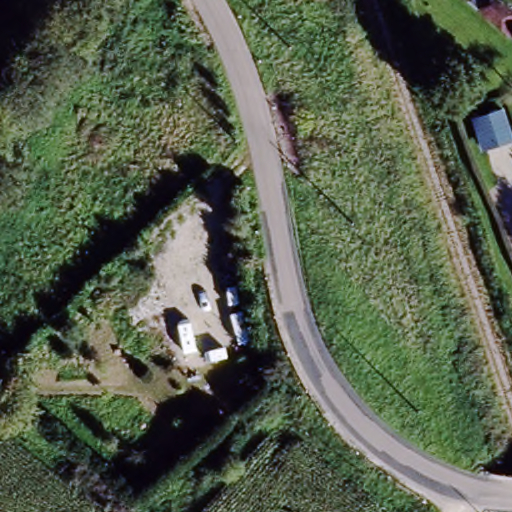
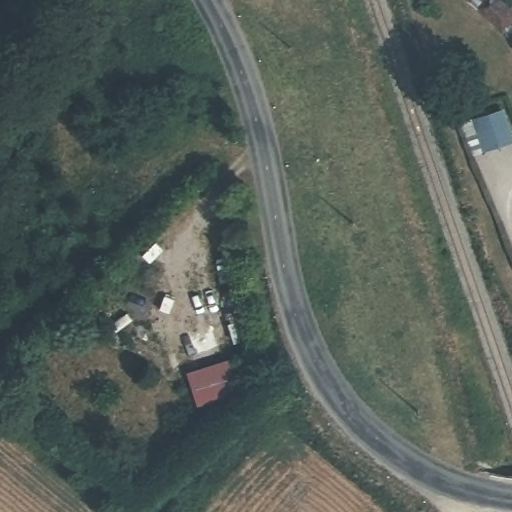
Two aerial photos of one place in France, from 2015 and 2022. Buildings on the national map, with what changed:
unchanged [(498,32),(493,27),(477,13),(488,1),(510,21),(498,32)]
unchanged [(473,120),(502,109),(512,132),(512,142),(484,151),(473,120)]
new [(229,360),(239,393),(197,407),(186,373),(229,360)]

